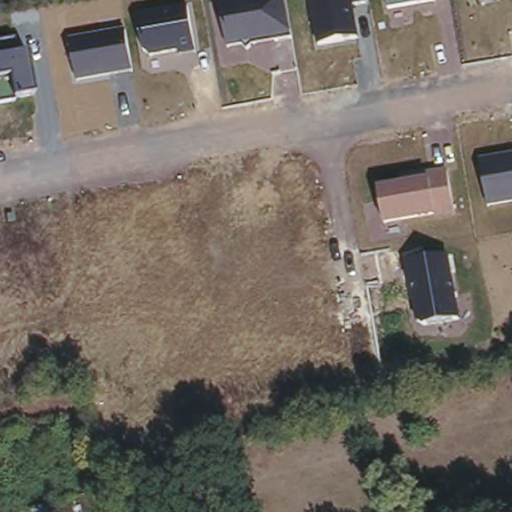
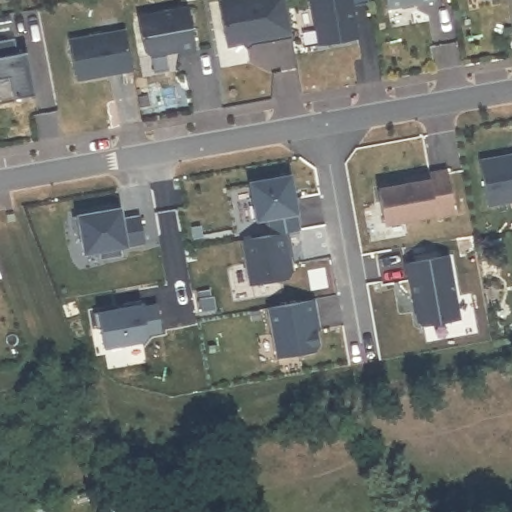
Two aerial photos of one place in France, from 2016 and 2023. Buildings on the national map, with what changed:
unchanged [(227,49),(219,0),(285,0),(292,38),(227,49)]
unchanged [(311,0),(370,0),(370,4),(353,8),(357,38),(319,46),(311,0)]
unchanged [(433,2),(386,10),(384,0),(433,0),(433,2)]
unchanged [(178,57),(176,51),(150,56),(144,51),(139,16),(189,8),(195,54),(178,57)]
unchanged [(76,82),(68,40),(125,32),(131,72),(76,82)]
unchanged [(0,42),(15,40),(17,53),(27,52),(35,94),(14,98),(15,103),(0,105),(0,42)]
unchanged [(480,161),(512,155),(512,203),(488,208),(480,161)]
unchanged [(377,186),(428,177),(427,172),(449,168),(457,217),(435,221),(435,214),(384,226),(377,186)]
new [(297,216),(299,230),(289,233),(294,255),(290,256),(293,271),(286,279),(250,285),(241,242),(271,235),(270,220),(257,222),(250,183),(291,174),(297,216)]
new [(123,220),(141,217),(146,245),(129,248),(120,250),(120,256),(102,258),(100,252),(84,256),(76,215),(120,208),(123,220)]
unchanged [(407,262),(449,255),(460,319),(420,326),(407,262)]
new [(321,331),(316,333),(320,350),(275,358),(267,308),(315,300),(321,331)]
new [(97,311),(144,304),(159,301),(162,334),(148,336),(142,344),(106,349),(97,311)]

